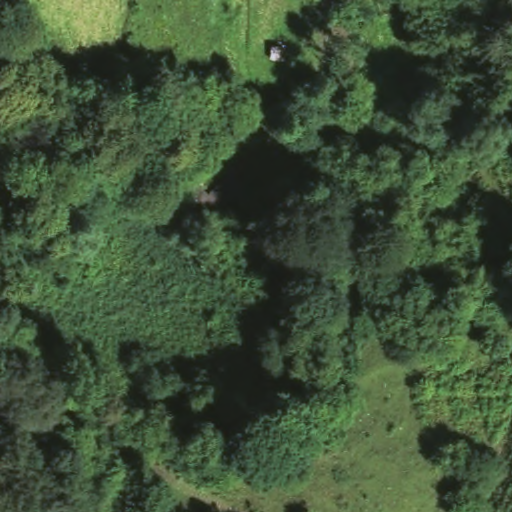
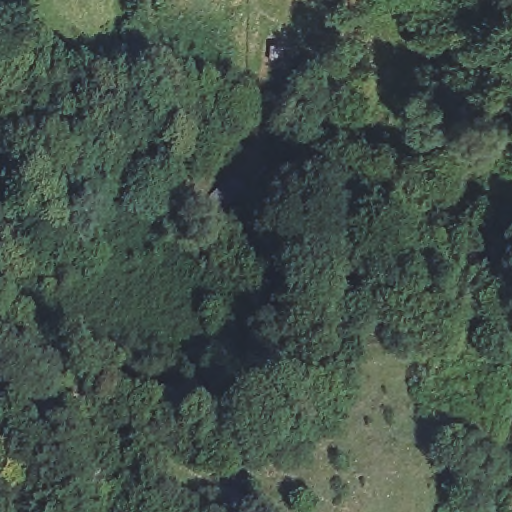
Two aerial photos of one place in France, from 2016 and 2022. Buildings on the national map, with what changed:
unchanged [(212,188),(233,171),(241,184),(247,197),(229,209),(212,188)]

